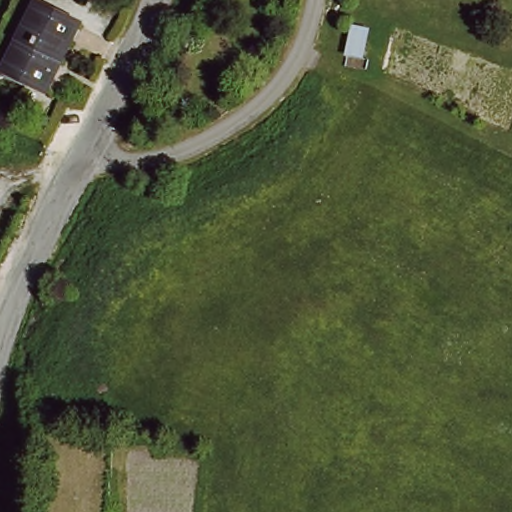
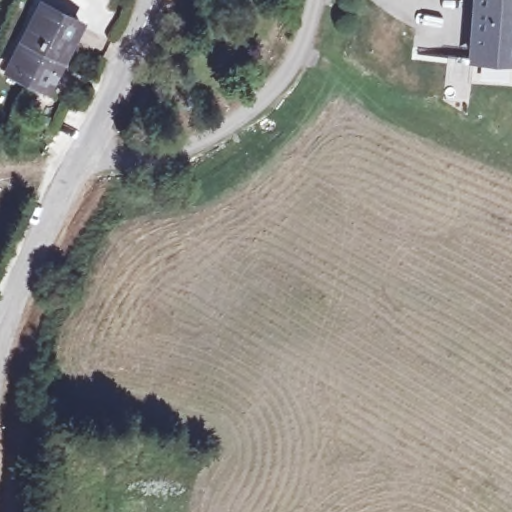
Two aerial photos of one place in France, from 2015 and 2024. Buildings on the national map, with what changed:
new [(512,0),(512,67),(467,64),(472,0),(512,0)]
unchanged [(42,4),(82,25),(49,89),(17,74),(33,41),(25,38),(42,4)]
demolished [(366,66),(345,61),(355,24),(375,29),(366,66)]

